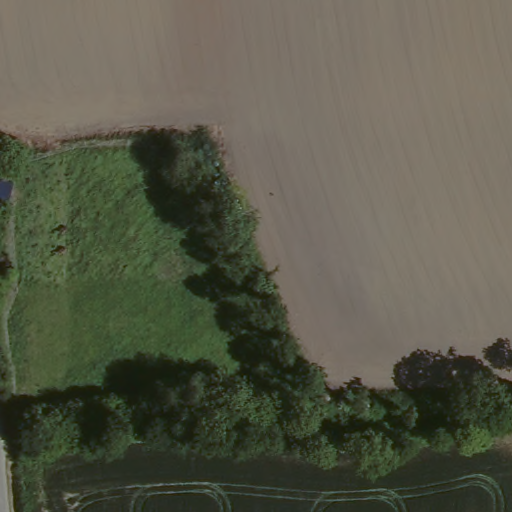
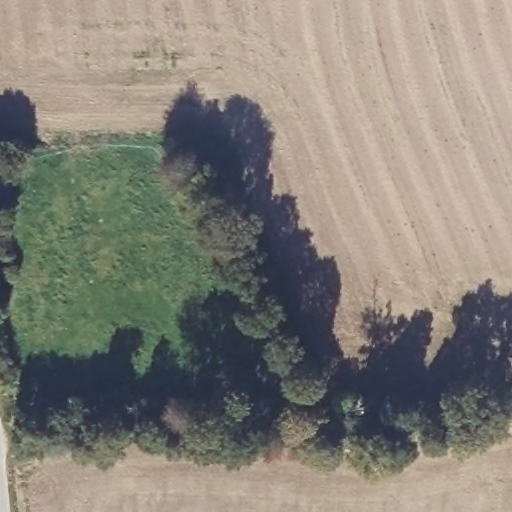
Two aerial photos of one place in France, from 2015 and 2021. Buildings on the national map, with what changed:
unchanged [(10,273),(0,276),(0,257),(6,256),(10,273)]

